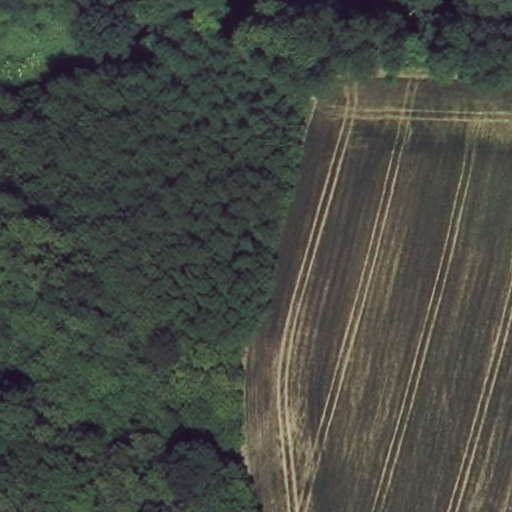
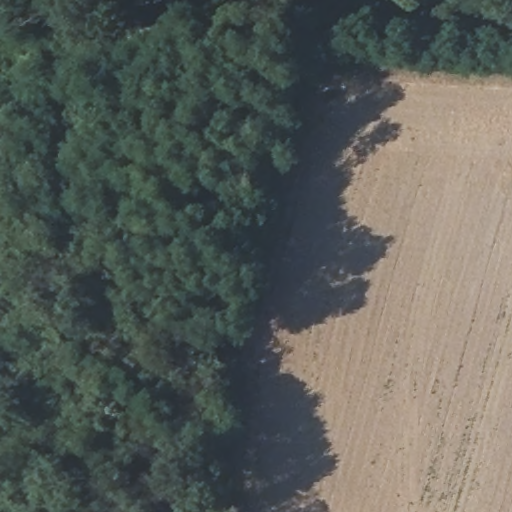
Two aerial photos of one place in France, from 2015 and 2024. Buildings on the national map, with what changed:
[]

